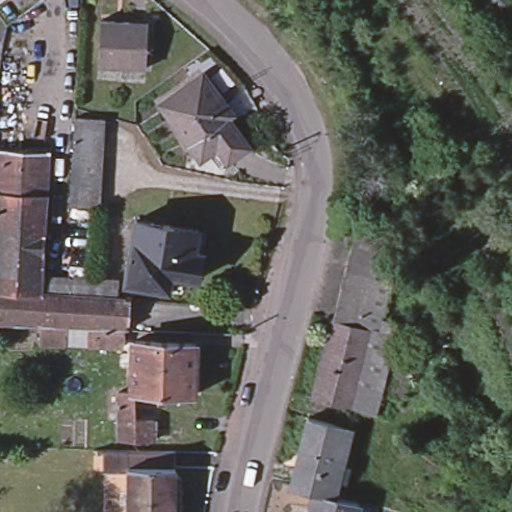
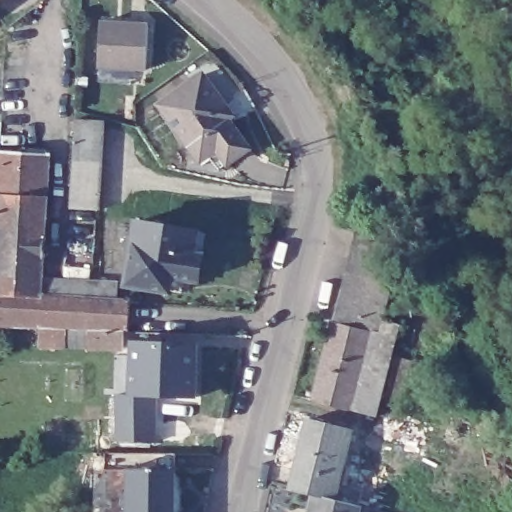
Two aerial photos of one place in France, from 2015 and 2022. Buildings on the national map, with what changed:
unchanged [(141,64),(93,62),(95,19),(125,20),(142,20),(142,24),(141,64)]
unchanged [(227,161),(215,147),(200,159),(182,136),(158,105),(198,74),(223,106),(216,110),(222,119),(225,117),(246,146),(242,150),(227,161)]
unchanged [(69,157),(70,137),(70,116),(100,118),(99,138),(98,159),(96,207),(94,207),(67,206),(69,157)]
unchanged [(7,190),(14,190),(15,180),(0,178),(0,162),(16,163),(30,164),(30,174),(54,175),(53,193),(47,291),(47,294),(0,291),(0,208),(1,189),(7,190)]
unchanged [(1,189),(0,208),(0,189),(1,189)]
unchanged [(142,219),(202,229),(200,249),(207,250),(203,276),(177,272),(174,287),(144,283),(132,281),(142,219)]
unchanged [(375,275),(345,267),(356,226),(363,228),(385,234),(379,257),(375,275)]
unchanged [(345,267),(375,275),(391,280),(382,315),(398,320),(375,411),(313,395),(345,267)]
unchanged [(94,343),(95,326),(70,325),(69,342),(46,341),(46,325),(0,323),(0,291),(47,294),(47,291),(136,295),(135,327),(128,327),(128,345),(94,343)]
unchanged [(160,428),(159,447),(123,445),(125,413),(125,401),(138,401),(140,350),(201,352),(199,403),(143,401),(142,415),(142,427),(160,428)]
unchanged [(344,478),(338,476),(334,492),(314,487),(290,481),(308,414),(350,425),(345,445),(352,447),(344,478)]
unchanged [(180,498),(175,500),(175,512),(127,512),(128,482),(104,481),(104,465),(149,465),(175,465),(175,480),(175,485),(180,488),(180,498)]
unchanged [(310,504),(314,489),(357,500),(369,503),(366,512),(315,512),(317,506),(310,504)]

